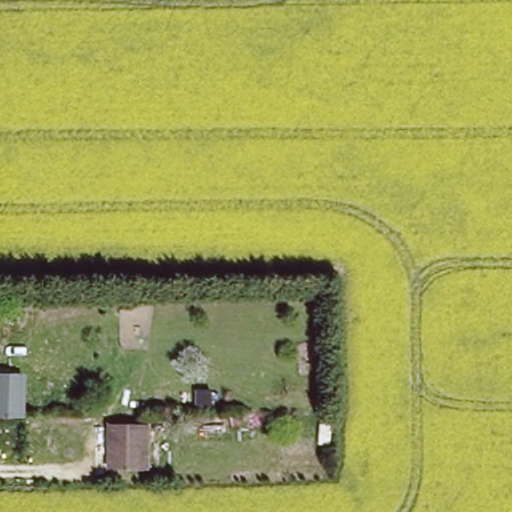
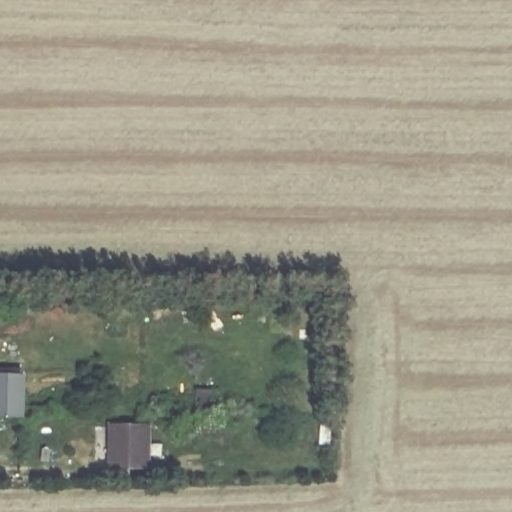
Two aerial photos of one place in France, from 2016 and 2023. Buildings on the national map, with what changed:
unchanged [(29,414),(0,414),(0,377),(28,377),(29,414)]
unchanged [(144,436),(144,465),(113,465),(113,437),(144,436)]

